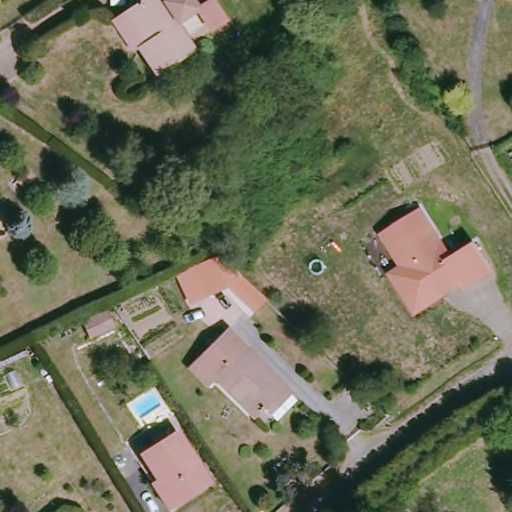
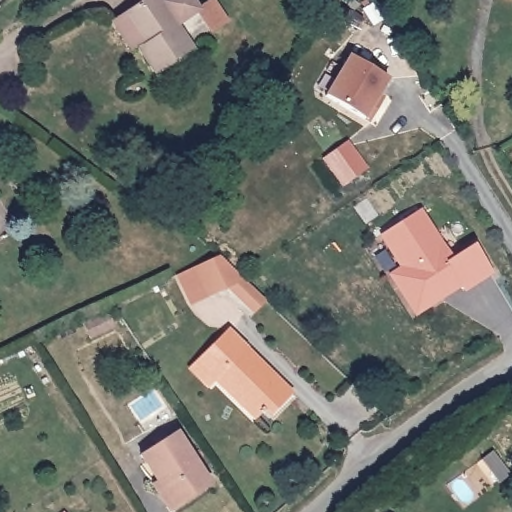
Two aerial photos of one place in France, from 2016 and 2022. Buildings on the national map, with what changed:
unchanged [(189,52),(152,76),(132,48),(127,51),(108,20),(120,12),(131,5),(138,0),(154,0),(157,5),(165,0),(184,0),(191,11),(170,25),(189,52)]
unchanged [(128,0),(138,0),(131,5),(128,0)]
new [(390,75),(378,94),(380,104),(370,120),(327,93),(352,52),(390,75)]
unchanged [(27,173),(34,181),(22,190),(16,182),(27,173)]
unchanged [(405,302),(389,277),(400,270),(379,236),(417,211),(449,260),(472,245),(491,273),(462,292),(455,280),(442,289),(446,295),(430,305),(427,307),(414,315),(405,302)]
unchanged [(227,290),(205,300),(192,273),(219,260),(241,281),(250,290),(255,295),(264,303),(252,315),(239,302),(227,290)]
unchanged [(269,419),(262,412),(255,419),(215,380),(207,386),(190,369),(228,331),(285,388),(291,393),(269,419)]
unchanged [(154,486),(159,483),(140,455),(155,445),(151,440),(162,432),(165,438),(175,431),(210,485),(174,508),(169,511),(154,486)]

